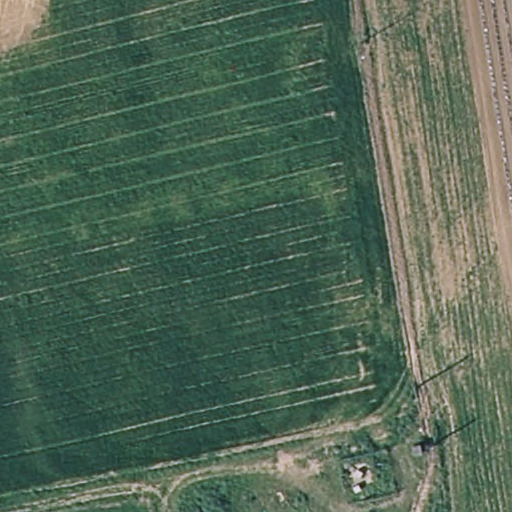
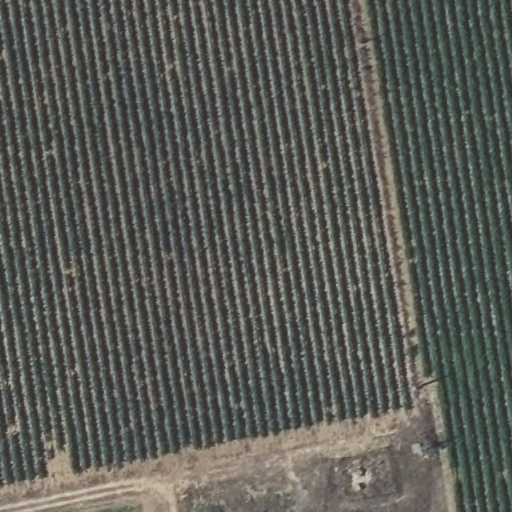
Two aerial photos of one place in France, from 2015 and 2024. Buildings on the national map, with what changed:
unchanged [(410,441),(422,440),(425,452),(413,454),(410,441)]

